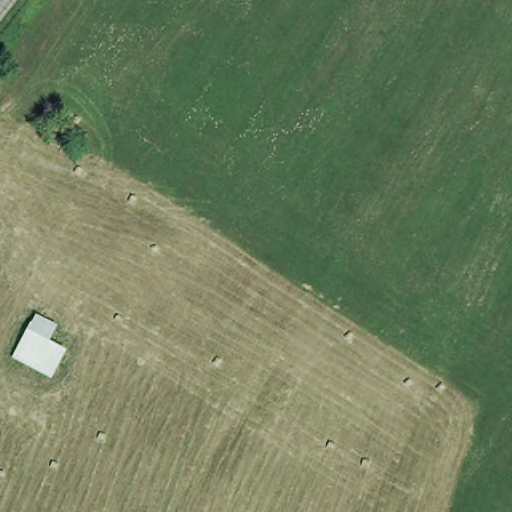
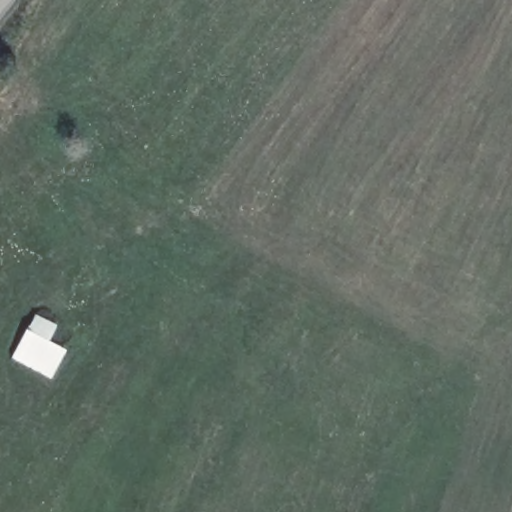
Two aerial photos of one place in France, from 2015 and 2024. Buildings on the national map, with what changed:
unchanged [(37,311),(60,323),(52,339),(67,348),(54,375),(15,356),(37,311)]

